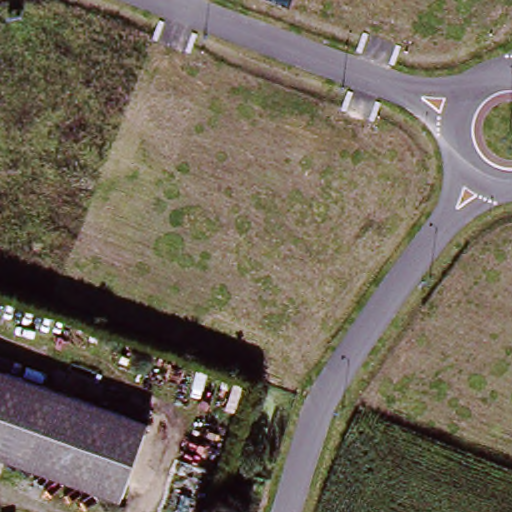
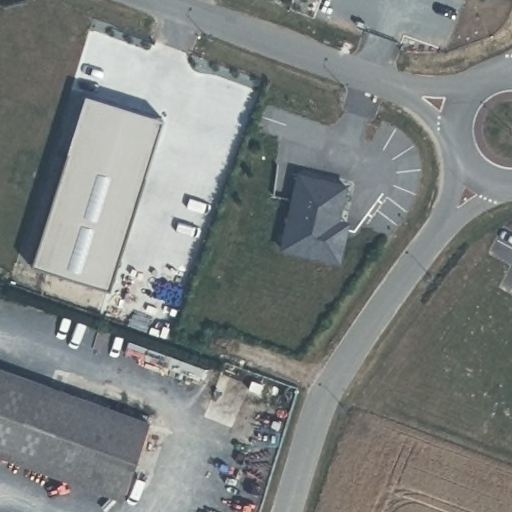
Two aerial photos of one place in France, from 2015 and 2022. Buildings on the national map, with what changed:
new [(30,263),(83,93),(160,118),(107,287),(30,263)]
new [(280,248),(297,174),(345,184),(337,220),(340,221),(347,222),(338,260),(332,259),(280,248)]
unchanged [(148,423),(121,502),(0,459),(0,371),(148,423)]

